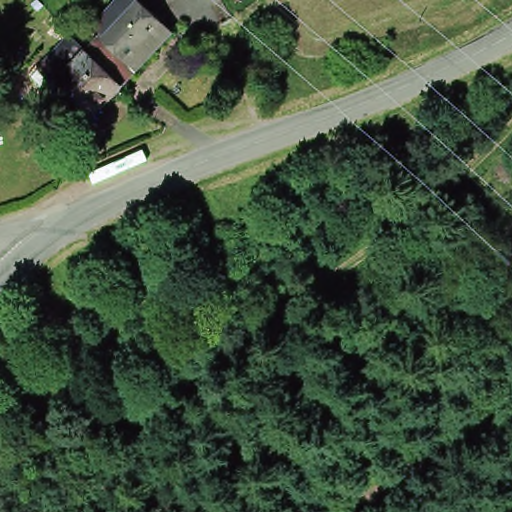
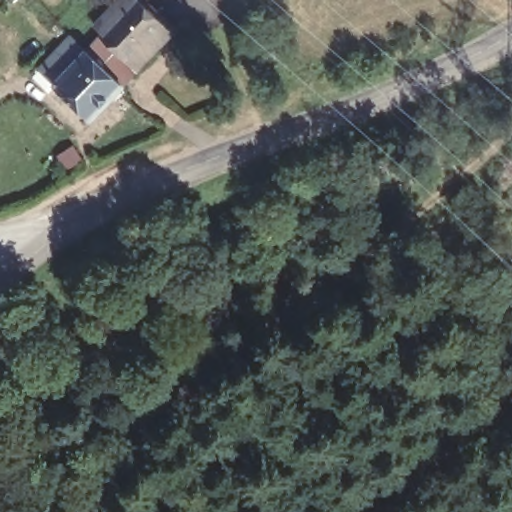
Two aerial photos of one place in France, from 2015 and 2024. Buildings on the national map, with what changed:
unchanged [(85,45),(114,12),(128,0),(142,0),(150,9),(100,61),(85,45)]
unchanged [(120,81),(100,61),(150,9),(172,29),(120,81)]
unchanged [(120,81),(85,116),(48,80),(43,85),(35,76),(39,70),(33,65),(53,45),(59,50),(73,36),(85,45),(100,61),(120,81)]

